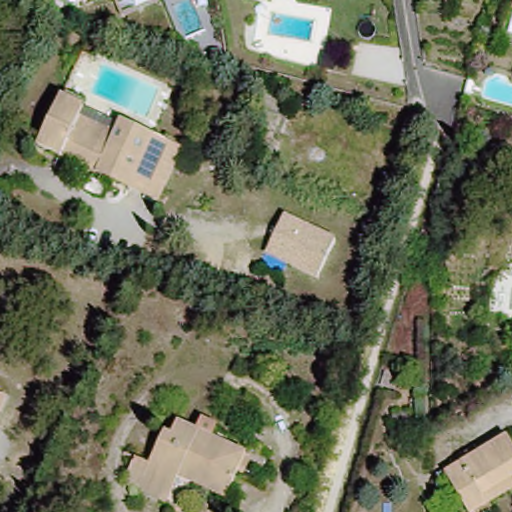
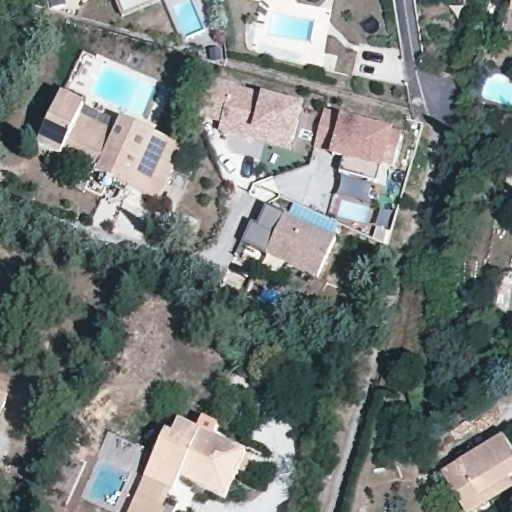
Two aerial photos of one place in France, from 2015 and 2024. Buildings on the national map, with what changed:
unchanged [(82,4),(80,0),(94,0),(82,4)]
unchanged [(115,2),(114,0),(121,0),(115,2)]
new [(259,137),(227,128),(229,120),(206,113),(217,77),(239,83),(239,86),(309,105),(300,138),(297,148),(259,137)]
unchanged [(183,155),(153,205),(38,143),(63,96),(83,108),(80,115),(116,133),(123,122),(183,155)]
new [(341,118),(394,132),(402,135),(391,172),(380,170),(376,185),(339,175),(343,161),(329,158),(330,154),(314,150),(325,113),(341,118)]
demolished [(283,163),(276,174),(265,165),(272,155),(283,163)]
unchanged [(335,244),(316,280),(267,253),(285,220),(335,244)]
unchanged [(7,395),(0,411),(0,393),(7,395)]
unchanged [(122,486),(127,475),(134,462),(146,468),(162,438),(167,439),(173,426),(194,435),(199,425),(224,439),(220,447),(230,452),(242,458),(246,460),(238,477),(233,475),(221,500),(189,487),(177,482),(170,496),(165,506),(122,486)]
unchanged [(469,512),(446,471),(507,434),(512,443),(512,494),(493,505),(482,512),(469,512)]

